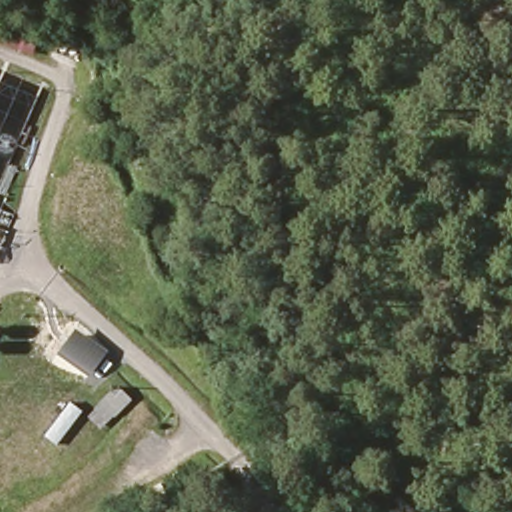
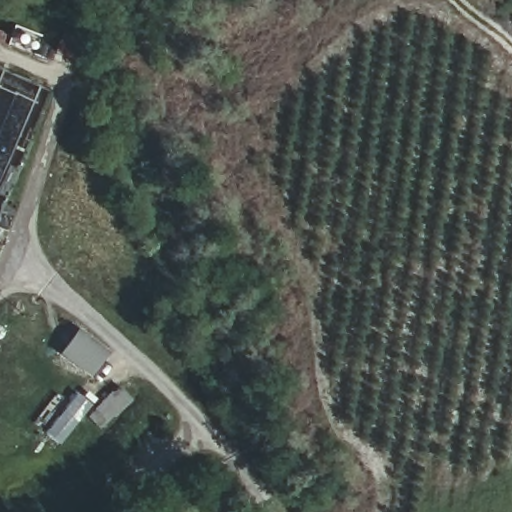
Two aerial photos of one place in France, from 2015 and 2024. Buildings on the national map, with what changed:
unchanged [(145,403),(127,421),(115,409),(133,391),(145,403)]
unchanged [(98,512),(99,511),(99,512),(98,512)]

